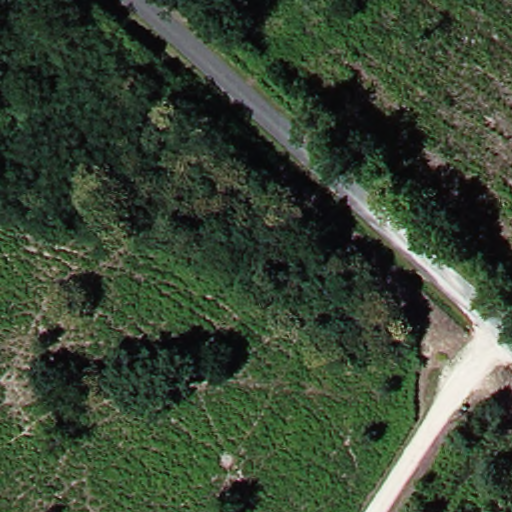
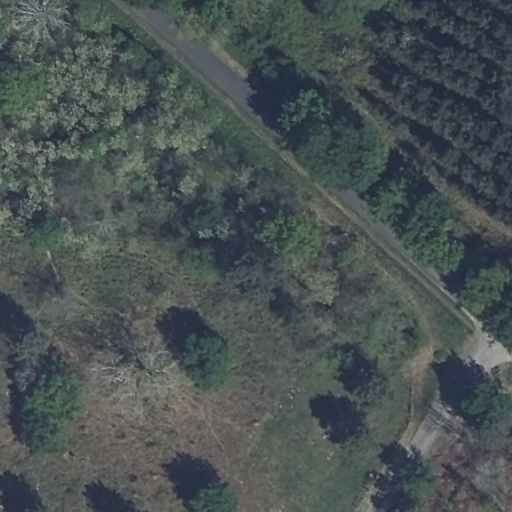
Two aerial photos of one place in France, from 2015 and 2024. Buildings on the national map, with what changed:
unchanged [(471,339),(465,346),(458,341),(463,333),(471,339)]

